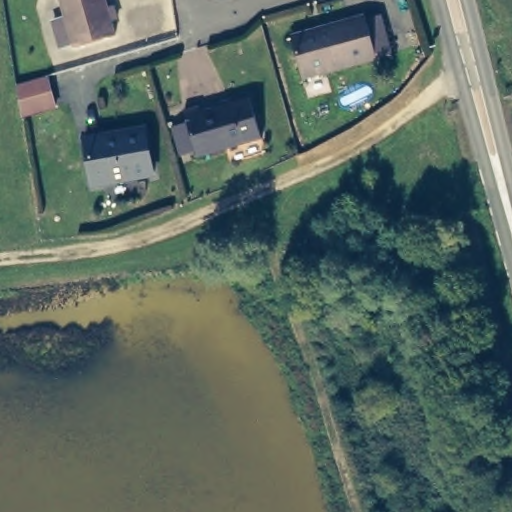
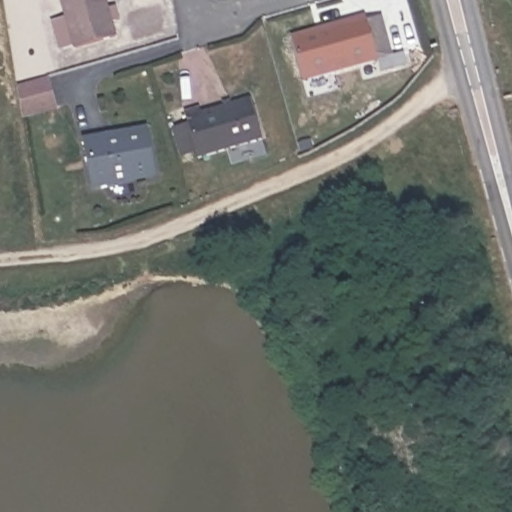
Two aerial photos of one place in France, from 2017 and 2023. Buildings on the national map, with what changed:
unchanged [(110,11),(113,21),(107,23),(112,39),(70,52),(67,49),(58,51),(51,25),(63,21),(57,0),(101,0),(105,11),(110,11)]
unchanged [(292,37),(365,16),(366,21),(382,17),(390,55),(377,60),(305,80),(292,37)]
unchanged [(47,117),(29,121),(22,85),(40,77),(50,72),(58,103),(45,105),(47,117)]
unchanged [(232,163),(228,150),(198,159),(197,151),(182,156),(175,128),(189,124),(186,112),(200,109),(202,112),(252,100),(263,140),(267,154),(232,163)]
unchanged [(107,136),(109,142),(146,136),(152,177),(95,186),(87,139),(107,136)]

